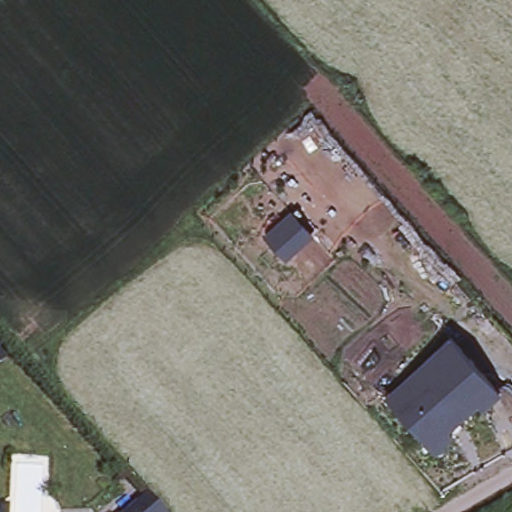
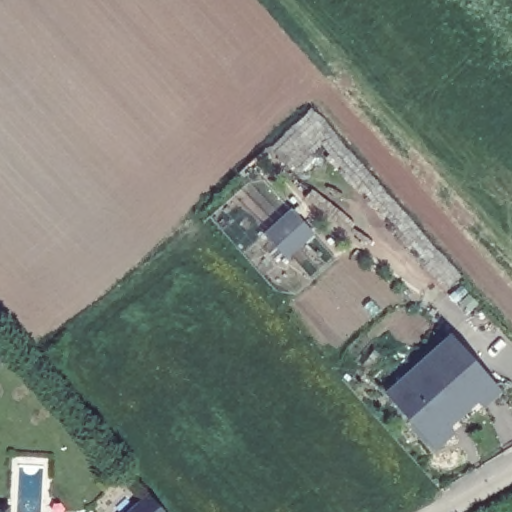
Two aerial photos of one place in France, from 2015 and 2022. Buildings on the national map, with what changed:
unchanged [(262,235),(293,208),(315,237),(283,260),(262,235)]
unchanged [(452,334),(498,391),(433,451),(385,393),(452,334)]
unchanged [(8,507),(8,512),(0,512),(0,506),(8,507)]
unchanged [(136,506),(141,512),(130,512),(136,506)]

